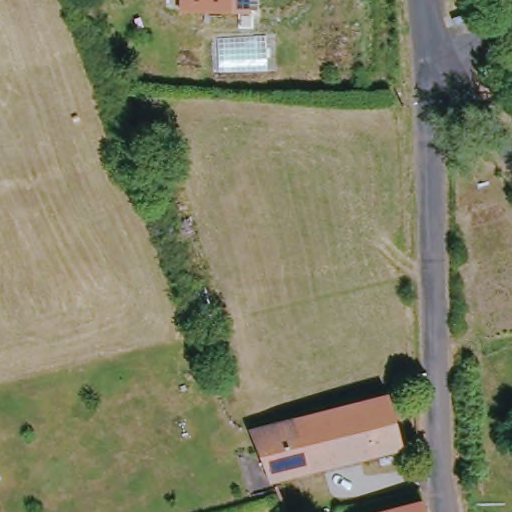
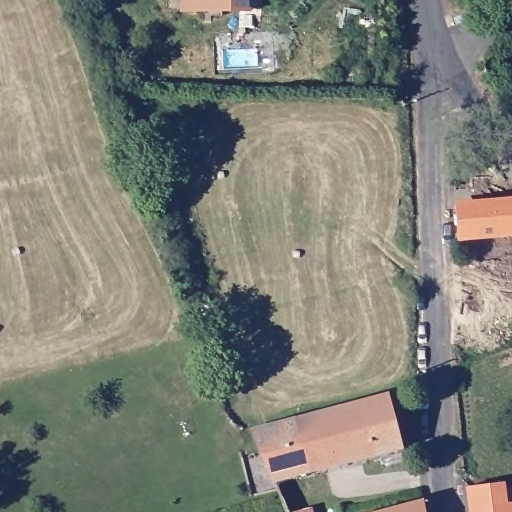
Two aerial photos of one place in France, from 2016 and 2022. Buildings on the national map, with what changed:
unchanged [(166,0),(196,0),(196,9),(166,8),(166,0)]
unchanged [(196,9),(196,0),(240,0),(239,11),(196,9)]
new [(512,234),(458,238),(456,206),(512,202),(512,234)]
unchanged [(243,428),(380,393),(395,440),(392,440),(395,451),(373,457),(372,453),(367,455),(365,448),(267,477),(265,477),(243,428)]
new [(467,488),(505,483),(508,504),(512,504),(512,512),(469,512),(467,488)]
unchanged [(418,512),(373,512),(413,497),(418,512)]
unchanged [(308,509),(309,512),(300,512),(308,509)]

